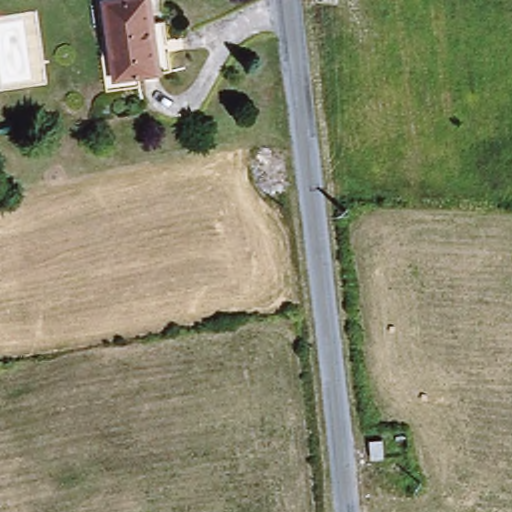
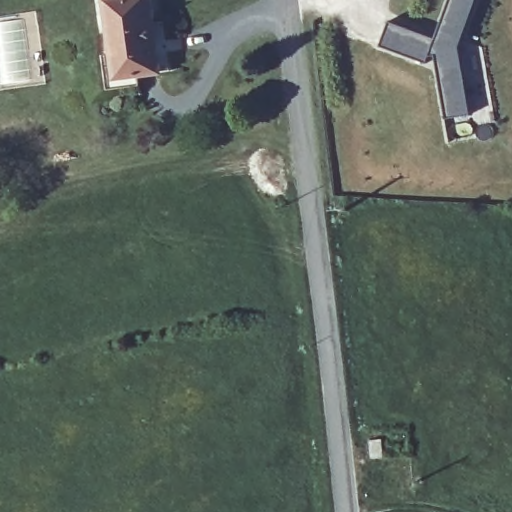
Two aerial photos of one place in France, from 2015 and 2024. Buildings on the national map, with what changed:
unchanged [(162,75),(120,80),(110,0),(153,0),(162,75)]
new [(461,48),(472,114),(448,118),(438,55),(432,55),(430,65),(381,46),(389,22),(436,38),(450,0),(478,0),(461,48)]

